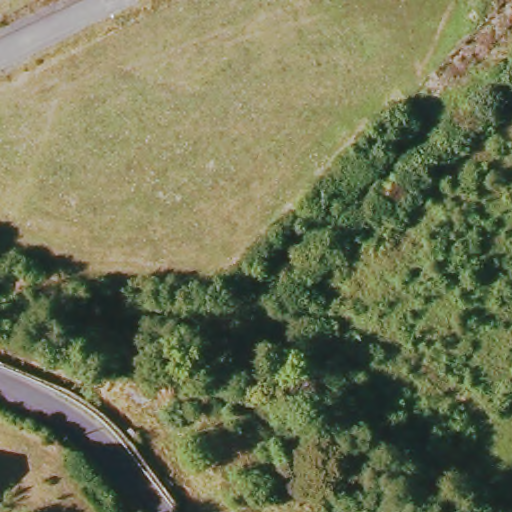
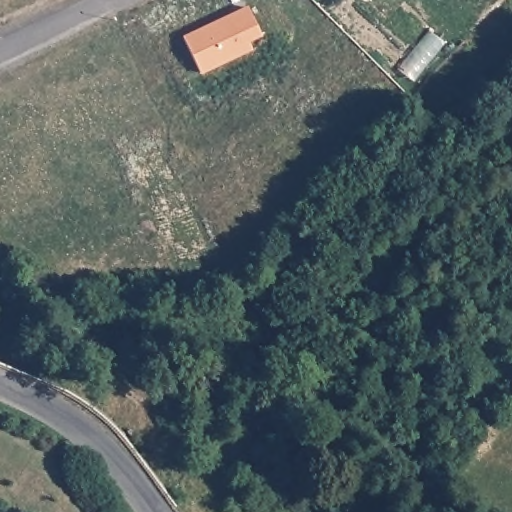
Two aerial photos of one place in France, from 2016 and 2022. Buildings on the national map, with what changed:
new [(246,43),(248,51),(198,73),(183,36),(247,7),(259,36),(246,43)]

